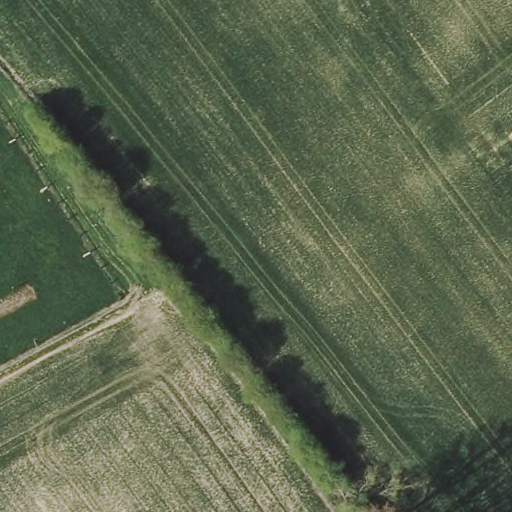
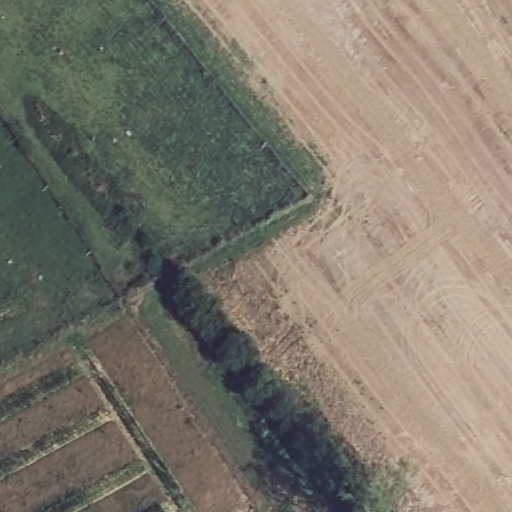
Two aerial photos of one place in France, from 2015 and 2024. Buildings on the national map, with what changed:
[]

